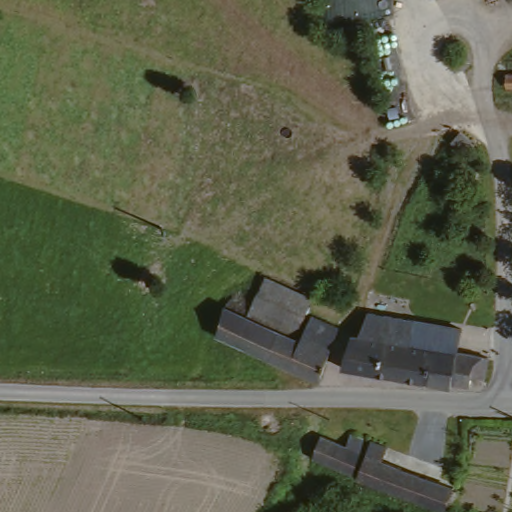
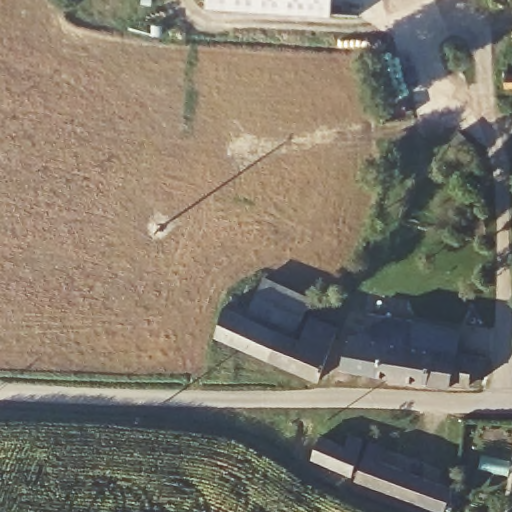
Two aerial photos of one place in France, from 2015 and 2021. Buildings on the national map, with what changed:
new [(207,0),(333,0),(332,15),(207,6),(207,0)]
unchanged [(506,0),(512,0),(512,3),(507,4),(506,0)]
unchanged [(512,76),(512,92),(507,92),(509,76),(512,76)]
unchanged [(473,151),(468,153),(462,155),(451,139),(461,132),(473,151)]
unchanged [(312,299),(296,336),(247,316),(262,277),(312,299)]
unchanged [(227,312),(302,344),(312,325),(339,336),(320,387),(241,353),(217,342),(222,326),(227,312)]
unchanged [(337,374),(347,340),(358,339),(367,320),(413,327),(408,347),(383,345),(378,379),(337,374)]
unchanged [(457,352),(486,358),(483,377),(469,377),(467,388),(451,384),(450,388),(378,379),(383,345),(408,347),(413,327),(460,333),(457,352)]
unchanged [(306,460),(316,439),(339,447),(343,437),(356,443),(343,474),(306,460)]
unchanged [(365,445),(379,450),(376,463),(447,490),(438,512),(424,512),(350,482),(365,445)]

